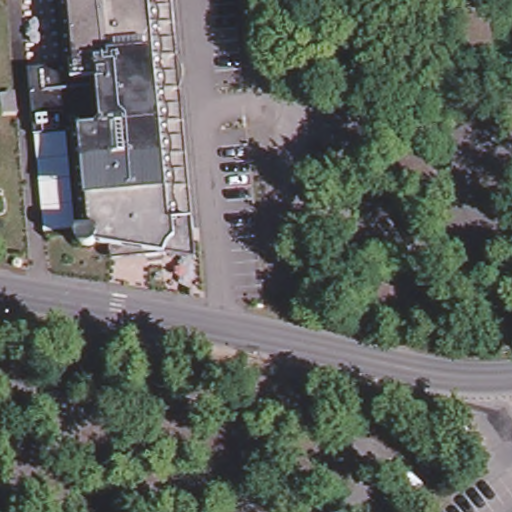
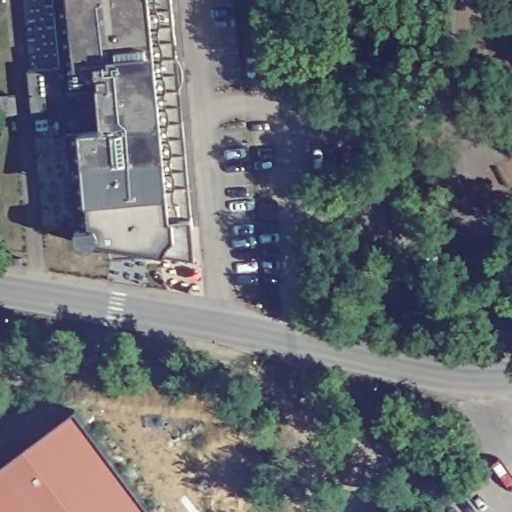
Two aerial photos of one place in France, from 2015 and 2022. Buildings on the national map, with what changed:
unchanged [(165,250),(146,252),(146,248),(97,240),(96,241),(95,242),(94,243),(93,244),(92,245),(90,245),(89,245),(88,245),(86,245),(85,245),(83,244),(81,243),(80,242),(79,240),(78,239),(78,238),(78,236),(78,235),(78,233),(78,232),(78,231),(79,229),(70,130),(36,133),(30,67),(64,64),(61,34),(58,0),(172,0),(173,7),(177,53),(180,85),(193,225),(196,255),(165,250)]
new [(153,512),(0,512),(0,466),(76,409),(153,512)]

